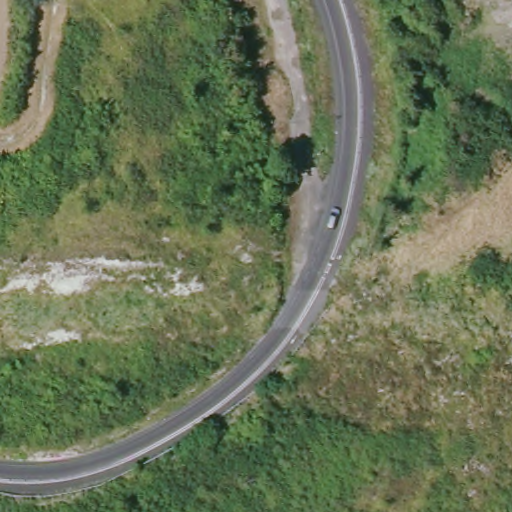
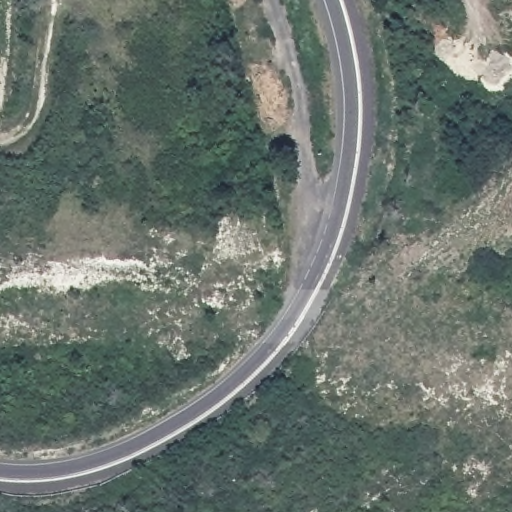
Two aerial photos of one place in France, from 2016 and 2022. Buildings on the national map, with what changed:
unchanged [(145,420),(135,408),(146,399),(156,412),(145,420)]

